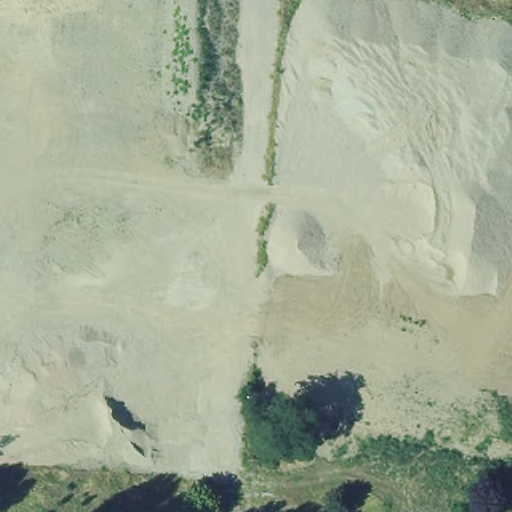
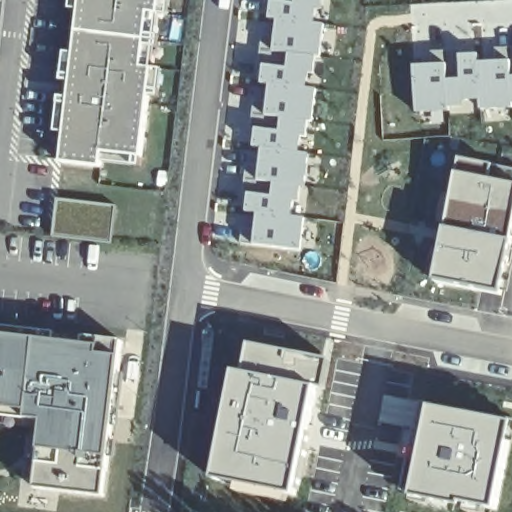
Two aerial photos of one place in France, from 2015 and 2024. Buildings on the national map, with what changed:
new [(102,154),(101,167),(61,163),(80,0),(160,0),(141,157),(102,154)]
new [(217,249),(238,0),(325,0),(304,253),(217,249)]
new [(0,35),(0,2),(4,2),(0,35)]
new [(512,35),(512,105),(414,107),(411,37),(512,35)]
new [(506,166),(502,286),(425,279),(431,162),(506,166)]
new [(111,244),(52,236),(57,199),(116,205),(111,244)]
new [(107,457),(40,448),(43,421),(0,416),(0,334),(121,348),(107,457)]
new [(330,360),(325,386),(311,385),(292,492),(216,477),(234,370),(245,371),(249,345),(330,360)]
new [(510,421),(495,508),(411,495),(427,405),(510,421)]
new [(35,488),(40,448),(107,457),(102,497),(35,488)]

